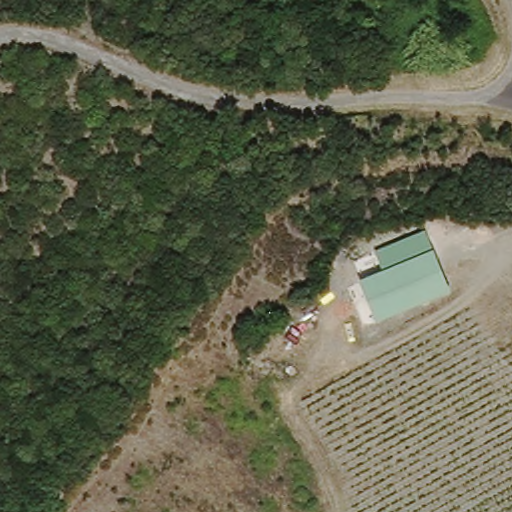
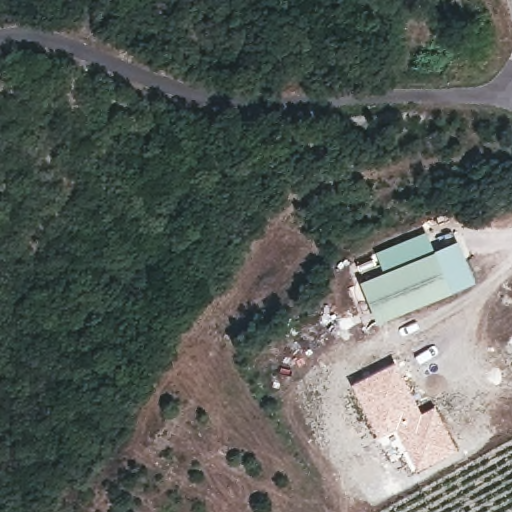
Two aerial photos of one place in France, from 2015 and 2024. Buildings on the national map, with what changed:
unchanged [(441,289),(371,318),(356,278),(382,266),(378,252),(423,233),(441,289)]
new [(394,361),(421,410),(434,404),(457,449),(416,470),(395,430),(377,438),(351,383),(394,361)]

